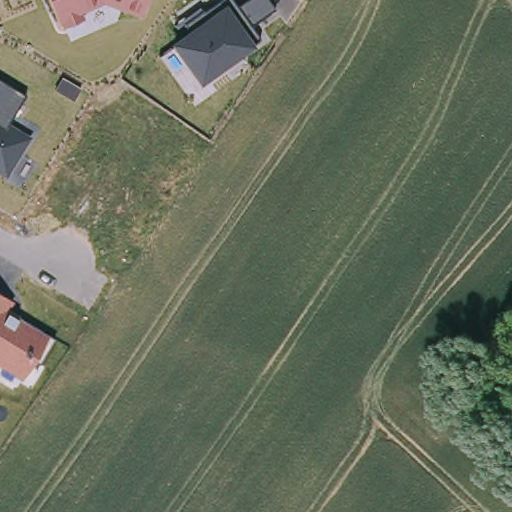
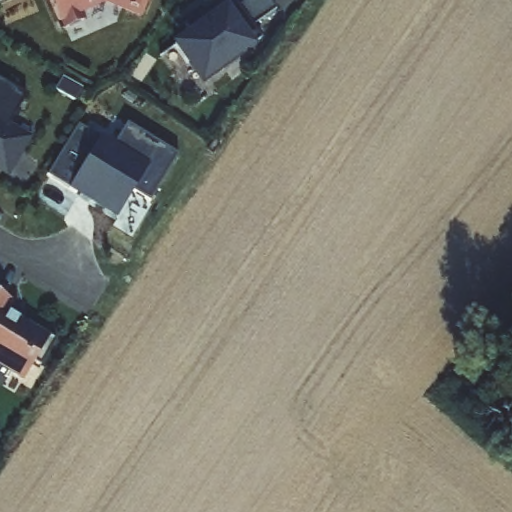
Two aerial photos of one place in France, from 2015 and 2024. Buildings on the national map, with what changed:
unchanged [(105,4),(82,13),(85,20),(62,30),(49,0),(149,0),(142,18),(105,4)]
unchanged [(222,0),(231,0),(237,7),(248,0),(269,0),(275,9),(252,25),(262,41),(255,47),(202,86),(172,42),(182,35),(174,26),(199,8),(202,12),(222,0)]
unchanged [(9,123),(31,137),(7,177),(0,173),(0,80),(25,96),(9,123)]
new [(116,215),(77,188),(74,193),(46,174),(77,122),(113,146),(128,124),(179,158),(147,204),(132,226),(116,215)]
unchanged [(9,312),(49,337),(54,339),(39,363),(35,361),(22,382),(0,368),(0,294),(14,302),(9,312)]

